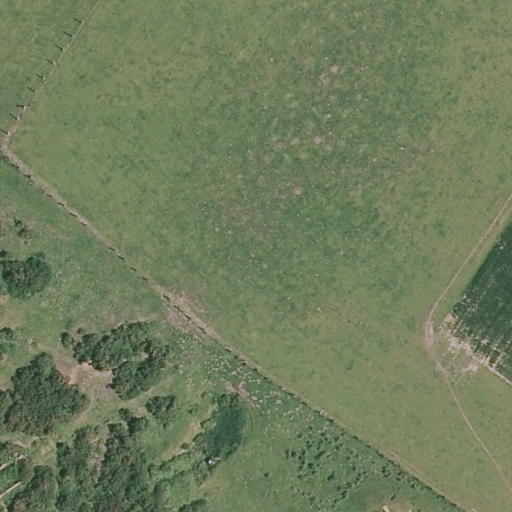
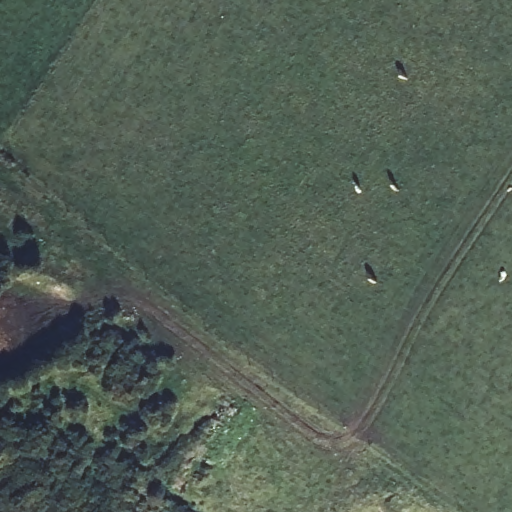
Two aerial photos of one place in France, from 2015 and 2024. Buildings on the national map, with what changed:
unchanged [(159,444),(196,481),(156,512),(150,512),(116,478),(159,444)]
unchanged [(373,509),(387,492),(402,505),(414,495),(432,512),(375,512),(373,509)]

